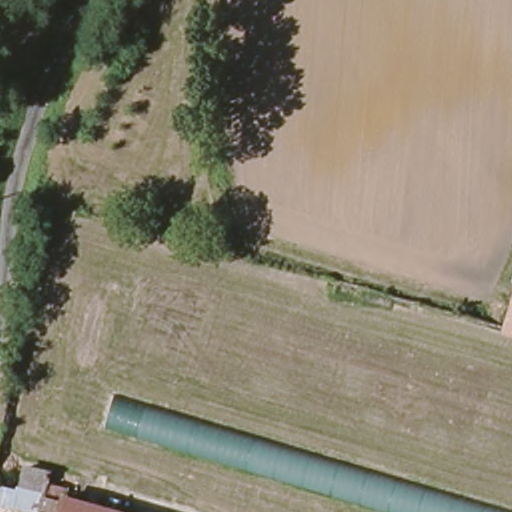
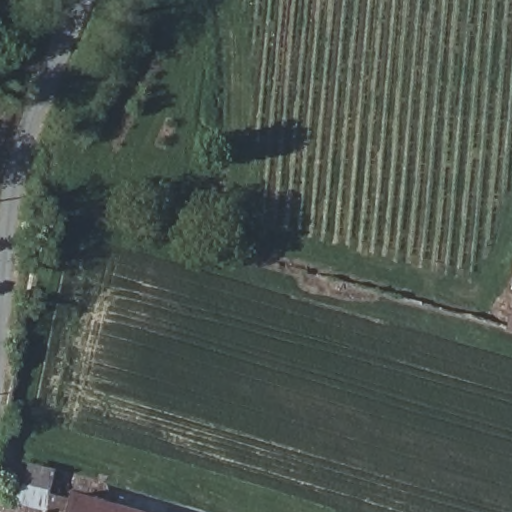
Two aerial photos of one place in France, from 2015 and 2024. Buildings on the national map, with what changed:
unchanged [(511,333),(512,331),(512,333),(511,333)]
demolished [(107,426),(114,401),(497,512),(399,512),(107,426)]
unchanged [(31,467),(55,473),(53,484),(72,489),(71,495),(77,497),(130,512),(0,512),(0,490),(27,494),(31,467)]

